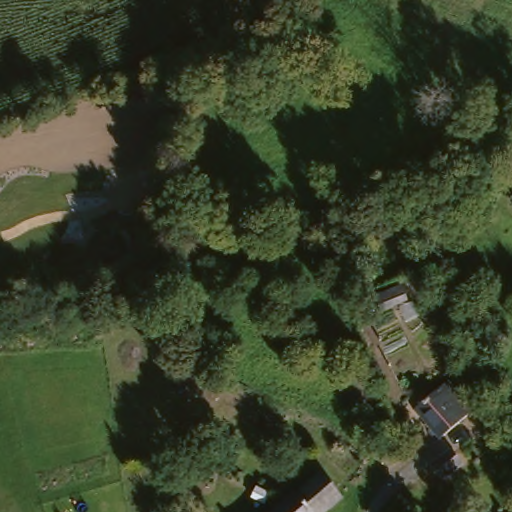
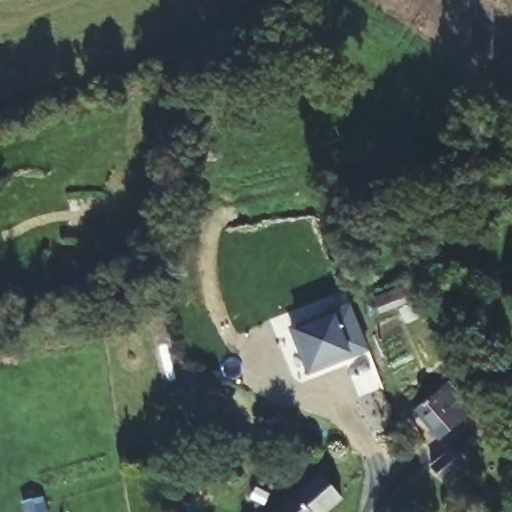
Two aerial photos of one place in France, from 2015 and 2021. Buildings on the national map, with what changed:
new [(368,352),(349,355),(309,371),(307,377),(288,329),(350,304),(368,352)]
unchanged [(446,430),(423,402),(440,385),(446,387),(458,375),(479,400),(446,430)]
unchanged [(446,449),(458,463),(433,487),(420,477),(446,449)]
unchanged [(326,512),(268,512),(291,492),(295,495),(317,474),(341,500),(326,512)]

